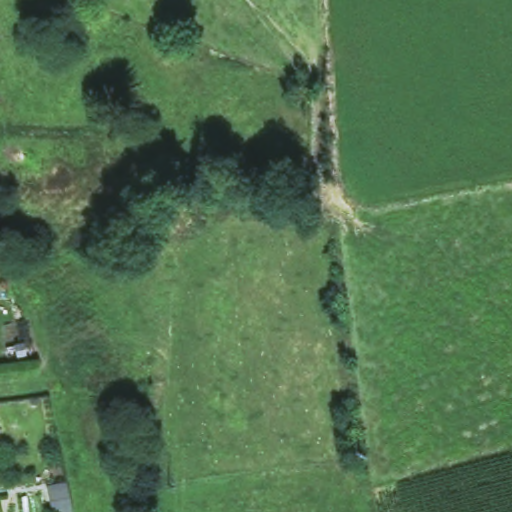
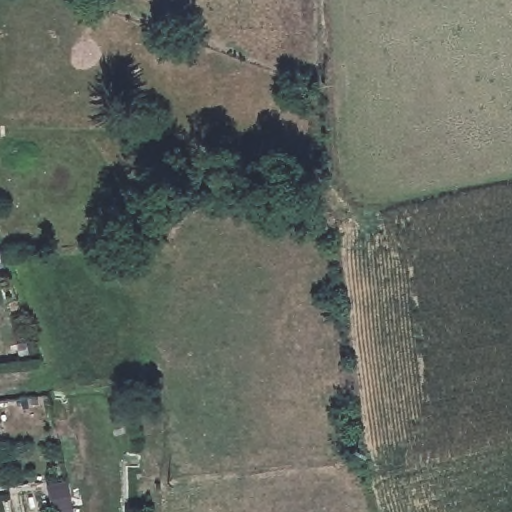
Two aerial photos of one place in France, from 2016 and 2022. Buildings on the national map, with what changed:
unchanged [(0,437),(0,427),(2,437),(0,437)]

